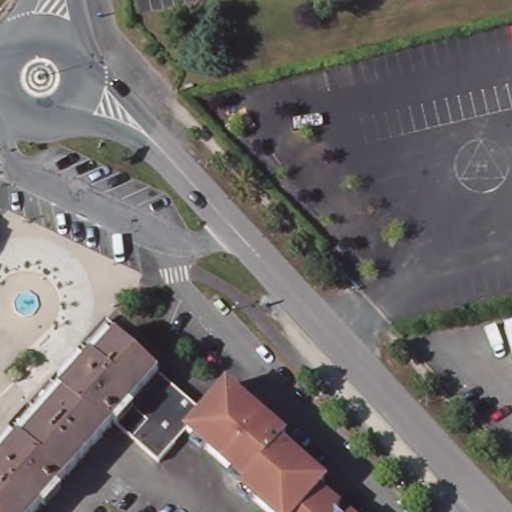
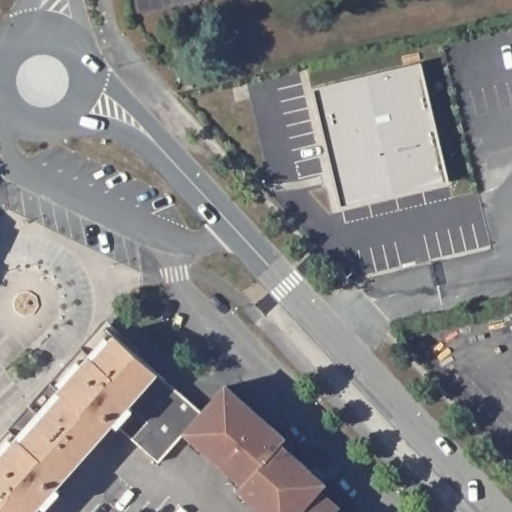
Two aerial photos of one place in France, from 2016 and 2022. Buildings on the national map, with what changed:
new [(312,89),(421,63),(450,182),(340,209),(335,184),(323,187),(320,174),(331,172),(312,89)]
unchanged [(100,328),(109,336),(0,459),(0,441),(100,328)]
unchanged [(240,494),(245,489),(186,436),(157,467),(112,427),(37,512),(0,512),(0,459),(109,336),(202,417),(226,391),(285,444),(281,449),(324,488),(318,495),(333,507),(338,512),(260,512),(240,494)]

